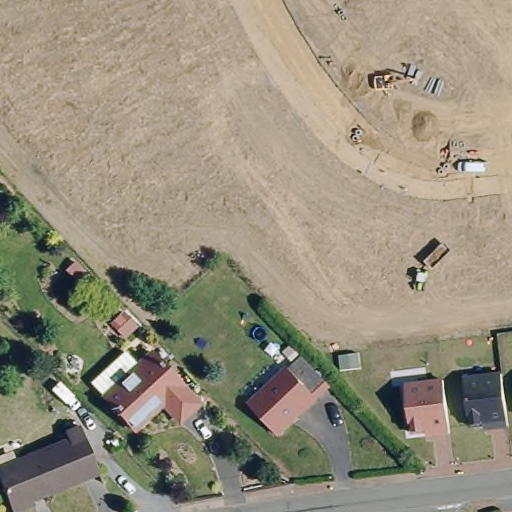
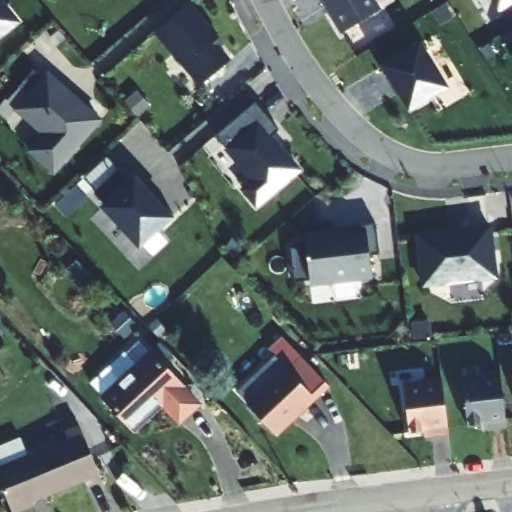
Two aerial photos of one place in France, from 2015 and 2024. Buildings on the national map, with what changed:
new [(0,0),(6,0),(20,20),(0,36),(0,0)]
new [(341,31),(324,0),(376,0),(381,9),(341,31)]
new [(499,10),(493,0),(512,0),(512,2),(499,10)]
new [(156,33),(191,3),(223,42),(218,45),(230,57),(199,85),(156,33)]
new [(382,67),(424,44),(447,91),(409,113),(382,67)]
new [(509,60),(512,58),(512,64),(509,60)]
new [(44,78),(46,74),(83,106),(85,104),(99,119),(54,171),(29,150),(45,132),(18,107),(29,95),(19,86),(33,70),(44,78)]
new [(255,101),(279,130),(266,141),(276,154),(281,150),(299,170),(256,206),(242,190),(253,181),(214,136),(255,101)]
new [(141,246),(101,205),(104,202),(95,191),(120,169),(128,180),(134,173),(173,215),(141,246)]
new [(422,286),(416,231),(491,222),(497,276),(422,286)]
new [(292,269),(289,249),(306,246),(305,239),(349,234),(349,227),(376,224),(379,255),(369,256),(371,275),(360,277),(361,281),(331,285),(329,278),(301,282),(292,269)]
new [(301,282),(294,282),(293,270),(301,282)]
new [(0,331),(0,326),(1,330),(0,331)]
unchanged [(244,398),(299,348),(326,378),(271,428),(244,398)]
unchanged [(148,362),(159,351),(204,401),(192,413),(174,392),(156,410),(148,402),(132,416),(112,395),(101,382),(118,366),(136,350),(148,362)]
unchanged [(506,427),(463,430),(459,375),(499,371),(506,427)]
unchanged [(444,431),(404,435),(399,380),(438,377),(444,431)]
unchanged [(83,430),(102,475),(35,502),(38,507),(27,512),(14,512),(0,477),(0,471),(71,441),(69,435),(83,430)]

